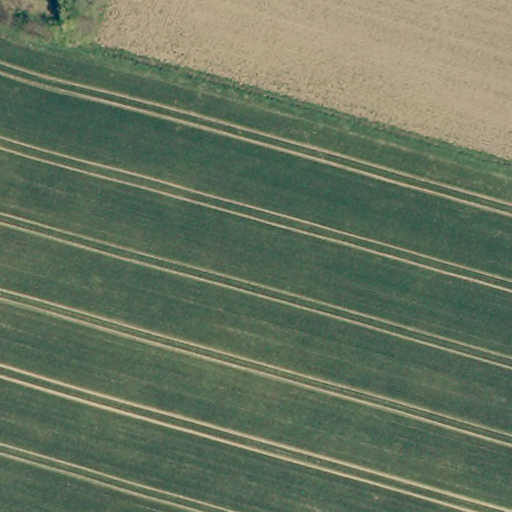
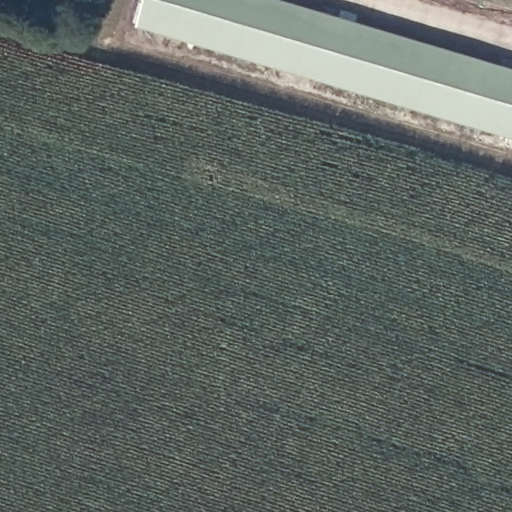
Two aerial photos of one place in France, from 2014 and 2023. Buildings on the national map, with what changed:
new [(145,0),(287,0),(512,68),(512,137),(136,26),(145,0)]

